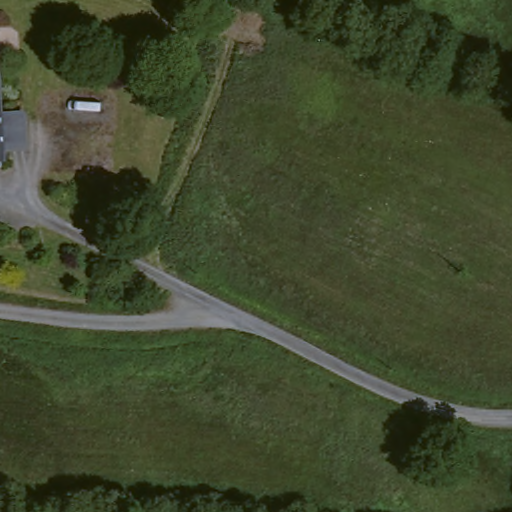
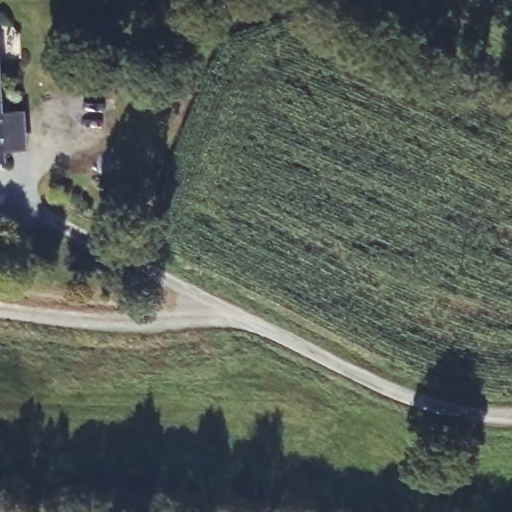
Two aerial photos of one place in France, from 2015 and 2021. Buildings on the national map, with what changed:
unchanged [(22,149),(2,150),(3,161),(0,162),(0,95),(1,116),(21,116),(22,149)]

